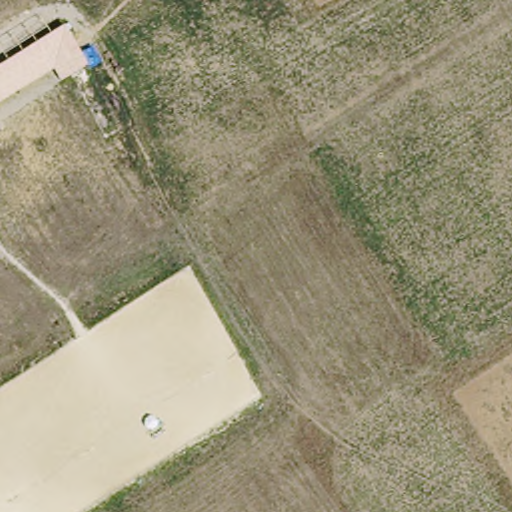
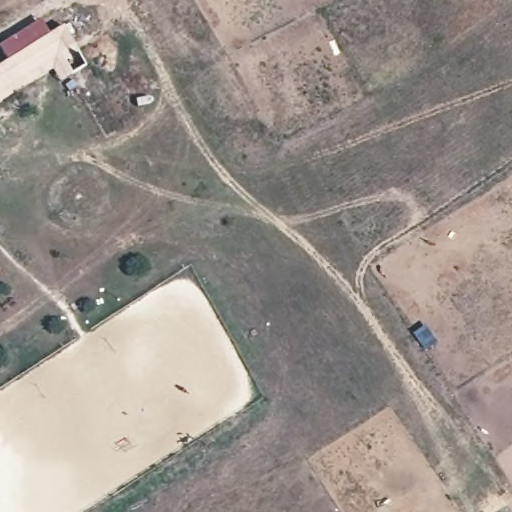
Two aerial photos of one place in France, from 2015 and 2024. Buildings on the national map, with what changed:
unchanged [(89,66),(62,81),(53,67),(0,101),(0,67),(65,26),(89,66)]

